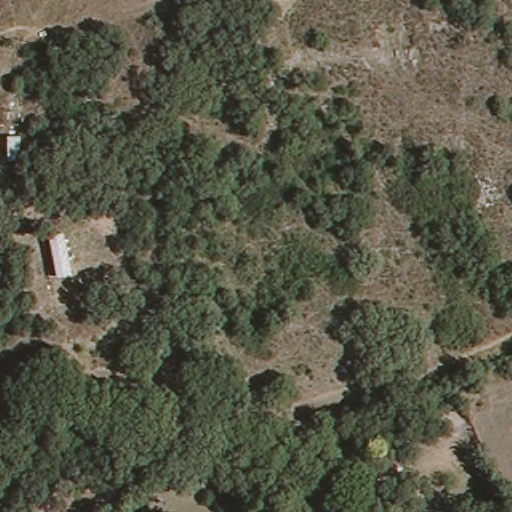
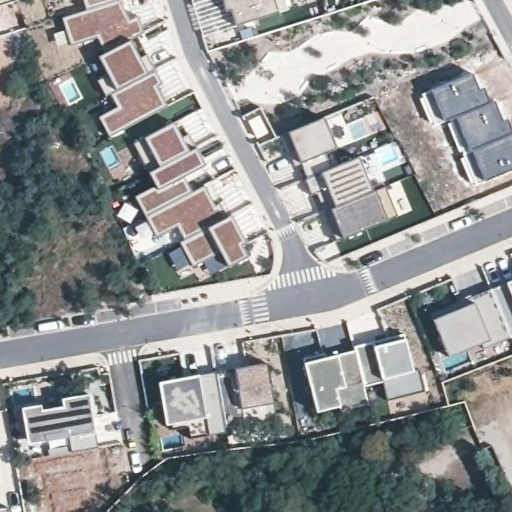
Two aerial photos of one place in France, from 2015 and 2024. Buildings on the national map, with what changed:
new [(136,17),(142,32),(131,38),(104,52),(96,37),(57,46),(54,34),(65,30),(62,17),(85,10),(82,0),(120,0),(130,20),(136,17)]
new [(288,9),(276,12),(236,26),(231,10),(225,11),(222,0),(285,0),(288,9)]
new [(140,58),(146,55),(154,70),(147,73),(118,89),(110,93),(106,95),(96,80),(107,73),(98,56),(104,52),(129,39),(140,58)]
new [(117,106),(110,93),(154,70),(161,82),(162,84),(159,85),(167,105),(109,137),(98,116),(117,106)]
new [(472,72),(479,89),(484,87),(490,102),(495,100),(502,120),(507,118),(512,129),(512,170),(485,181),(471,187),(444,120),(435,124),(422,94),(431,90),(472,72)]
new [(325,117),(337,147),(310,160),(313,166),(311,167),(315,176),(307,179),(287,132),(325,117)]
new [(175,121),(204,167),(185,178),(192,192),(204,186),(218,214),(202,224),(204,227),(207,227),(227,267),(210,275),(202,261),(191,267),(190,265),(176,271),(167,252),(180,245),(179,243),(183,241),(176,227),(156,237),(134,196),(154,187),(132,142),(175,121)]
new [(397,215),(387,220),(342,237),(337,240),(316,192),(313,194),(307,179),(315,176),(311,167),(313,166),(310,160),(325,153),(332,167),(359,157),(373,191),(375,191),(386,187),(397,215)]
new [(246,242),(241,245),(247,257),(227,267),(208,229),(231,216),(246,242)]
new [(492,292),(507,285),(512,283),(512,337),(492,292)]
new [(512,337),(484,347),(481,343),(449,356),(433,320),(432,314),(492,292),(512,337)]
new [(405,334),(407,341),(414,368),(419,367),(425,392),(388,402),(383,382),(364,387),(355,352),(354,347),(405,334)]
new [(342,412),(341,407),(317,412),(305,365),(338,357),(355,352),(369,405),(342,412)]
new [(188,421),(168,425),(159,383),(266,363),(278,422),(193,438),(188,421)]
new [(69,437),(29,444),(22,410),(40,406),(42,412),(64,407),(63,399),(90,395),(98,447),(72,452),(69,437)]
demolished [(440,435),(429,407),(452,401),(461,429),(440,435)]
new [(8,512),(0,512),(0,510),(8,508),(8,512)]

